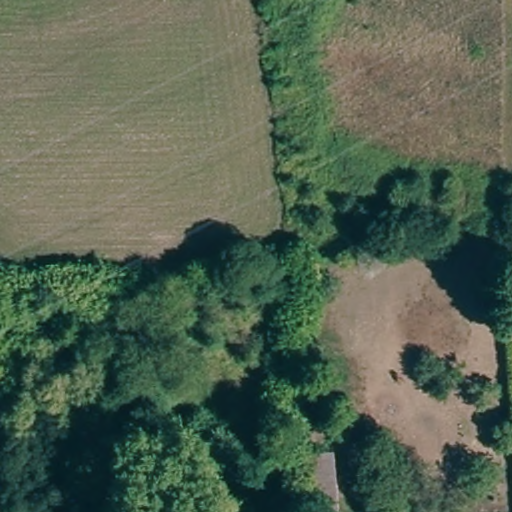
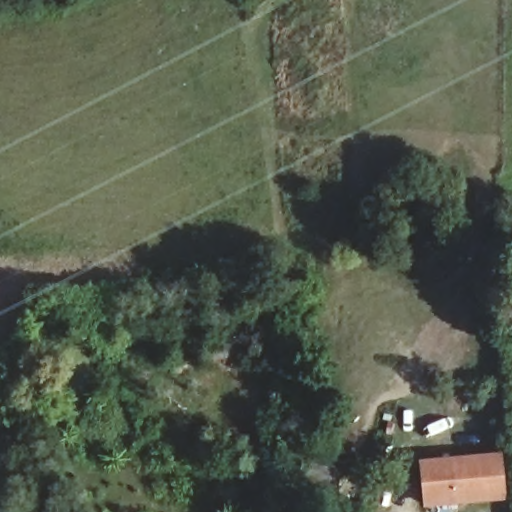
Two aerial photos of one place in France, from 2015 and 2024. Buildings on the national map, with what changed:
unchanged [(309,512),(304,450),(335,448),(341,512),(309,512)]
new [(500,455),(505,499),(426,506),(422,463),(500,455)]

